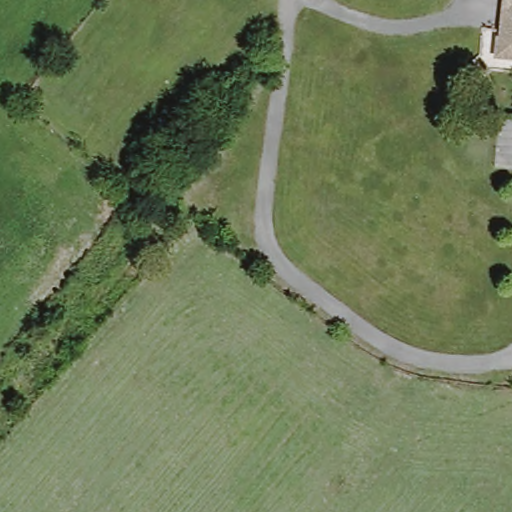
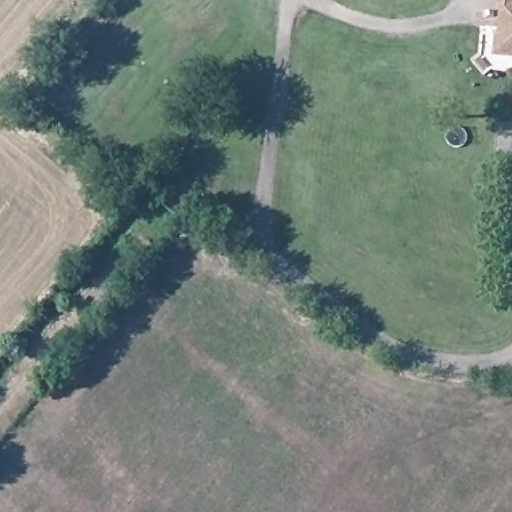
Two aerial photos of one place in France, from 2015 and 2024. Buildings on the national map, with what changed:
unchanged [(511,11),(512,11),(512,67),(509,67),(511,11)]

